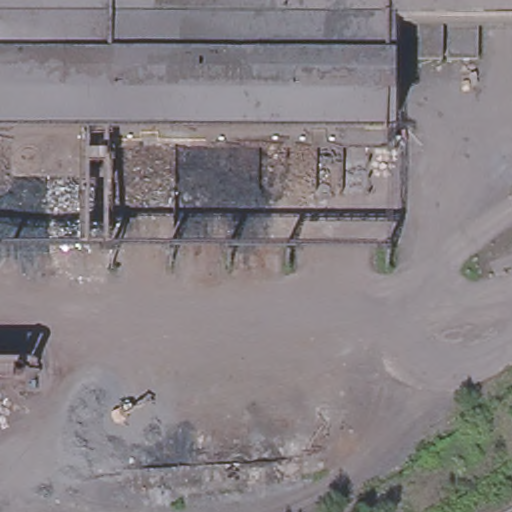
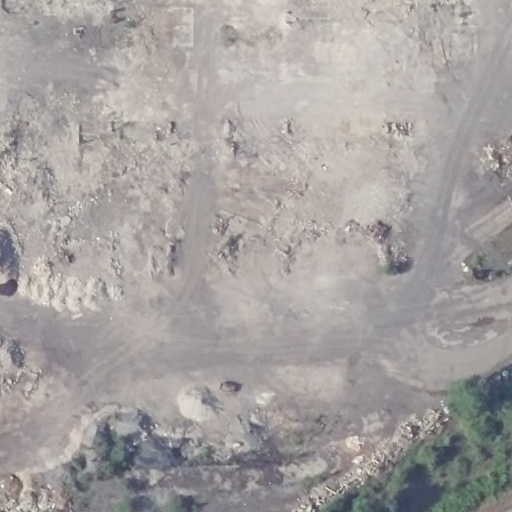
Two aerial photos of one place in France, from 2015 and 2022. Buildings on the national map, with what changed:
demolished [(112,4),(110,129),(0,130),(0,0),(62,0),(112,4)]
demolished [(112,4),(62,0),(112,0),(112,4)]
demolished [(512,27),(475,26),(444,26),(439,26),(386,26),(112,4),(112,0),(512,0),(512,27)]
demolished [(386,26),(439,26),(439,59),(415,59),(415,36),(404,36),(404,80),(387,80),(387,129),(110,129),(112,4),(386,26)]
demolished [(475,59),(445,59),(444,26),(475,26),(475,59)]

